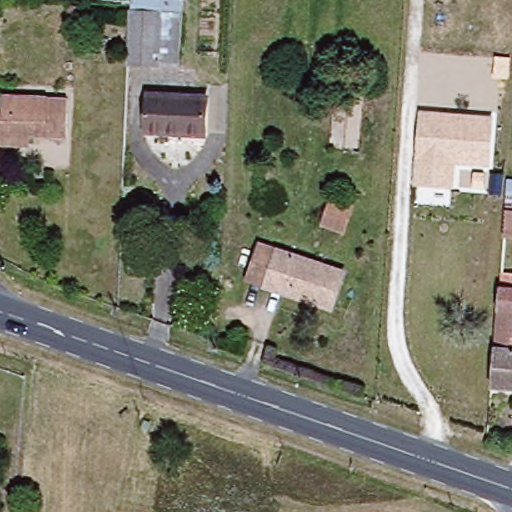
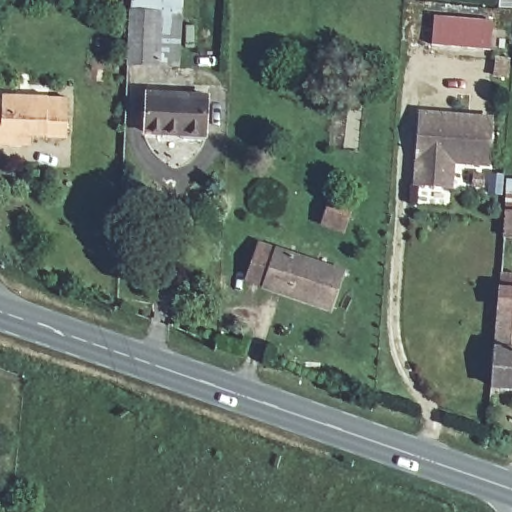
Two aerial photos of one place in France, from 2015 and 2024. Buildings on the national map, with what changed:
unchanged [(159,3),(156,56),(127,54),(128,1),(159,3)]
unchanged [(159,3),(177,4),(176,57),(156,56),(159,3)]
new [(432,19),(491,23),(488,51),(431,48),(432,19)]
unchanged [(206,96),(204,135),(144,132),(146,93),(206,96)]
unchanged [(25,148),(0,147),(0,98),(54,99),(67,99),(65,137),(52,136),(26,136),(25,148)]
unchanged [(492,116),(488,166),(457,164),(454,192),(413,187),(419,110),(492,116)]
unchanged [(352,204),(341,226),(322,217),(333,195),(352,204)]
unchanged [(510,201),(512,201),(512,234),(507,234),(510,201)]
unchanged [(339,276),(327,313),(265,293),(266,281),(249,275),(258,247),(339,276)]
unchanged [(512,388),(491,386),(498,289),(512,290),(512,388)]

